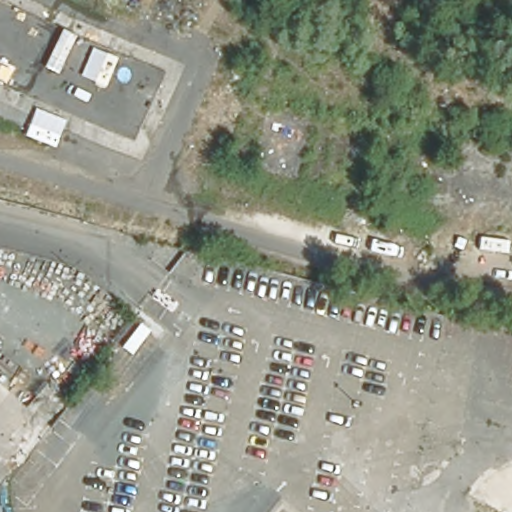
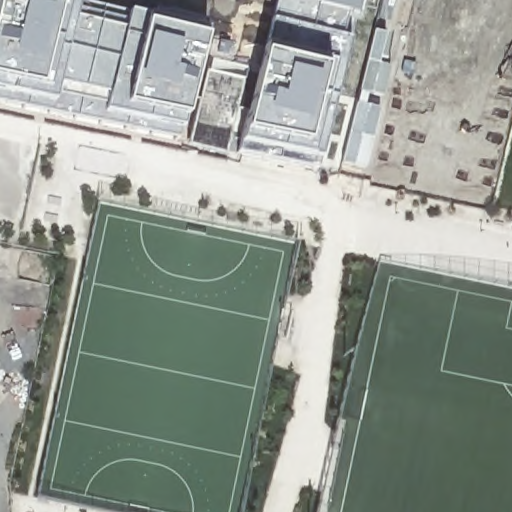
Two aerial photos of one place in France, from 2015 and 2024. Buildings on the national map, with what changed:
new [(355,21),(350,20),(345,39),(347,40),(317,158),(316,169),(237,154),(239,144),(241,133),(245,115),(236,110),(224,155),(187,147),(199,101),(186,101),(181,121),(178,129),(176,140),(0,103),(0,0),(360,0),(355,21)]

